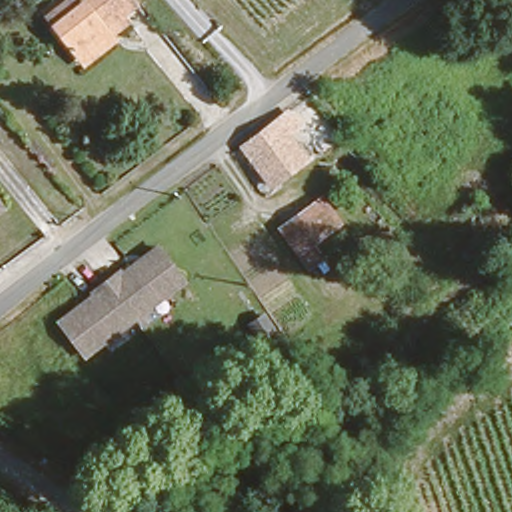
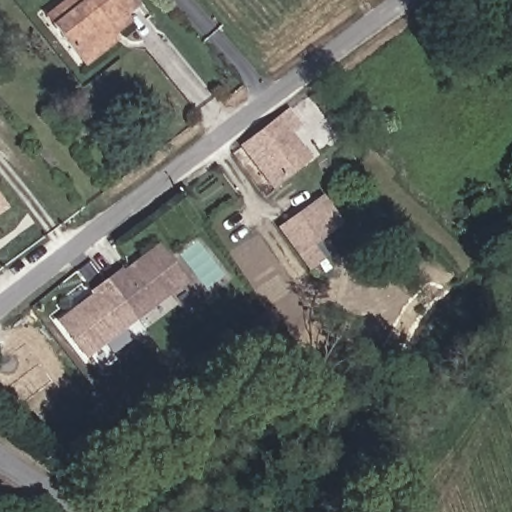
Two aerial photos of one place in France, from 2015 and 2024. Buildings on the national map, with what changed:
unchanged [(84,63),(77,57),(49,22),(41,13),(58,0),(132,0),(122,7),(130,17),(108,33),(114,41),(84,63)]
unchanged [(276,179),(245,140),(277,115),(310,153),(276,179)]
unchanged [(325,250),(312,260),(281,222),(326,187),(341,209),(312,232),(325,250)]
unchanged [(0,197),(1,198),(0,200),(0,197)]
unchanged [(82,357),(57,326),(89,301),(85,291),(120,263),(125,268),(162,240),(188,272),(82,357)]

